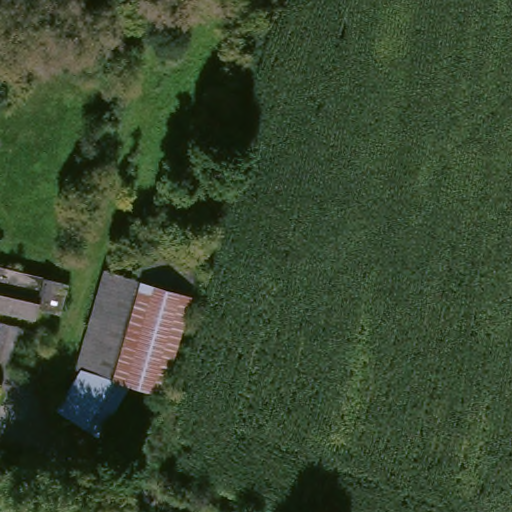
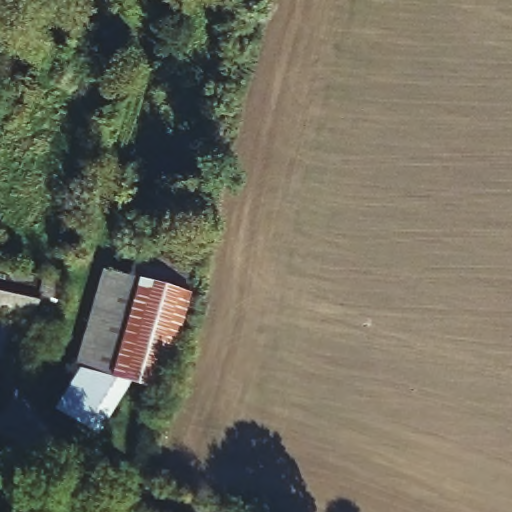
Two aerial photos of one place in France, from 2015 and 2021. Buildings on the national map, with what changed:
unchanged [(92,368),(83,365),(109,267),(137,275),(145,250),(146,248),(204,263),(172,372),(169,390),(139,381),(92,368)]
unchanged [(65,310),(44,305),(40,317),(0,306),(0,263),(72,282),(65,310)]
unchanged [(18,335),(18,338),(13,338),(4,372),(0,368),(0,325),(19,331),(18,335)]
unchanged [(139,381),(105,435),(62,416),(92,368),(139,381)]

